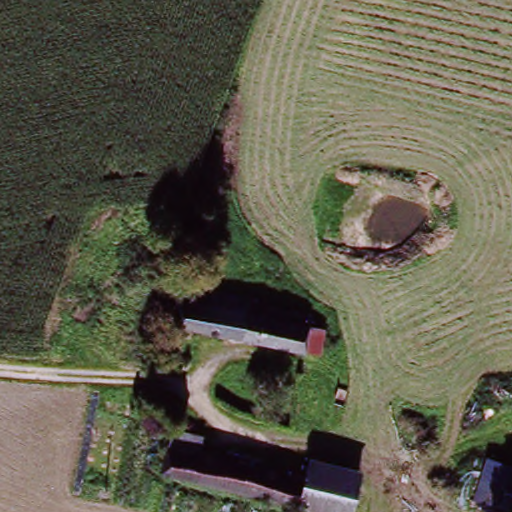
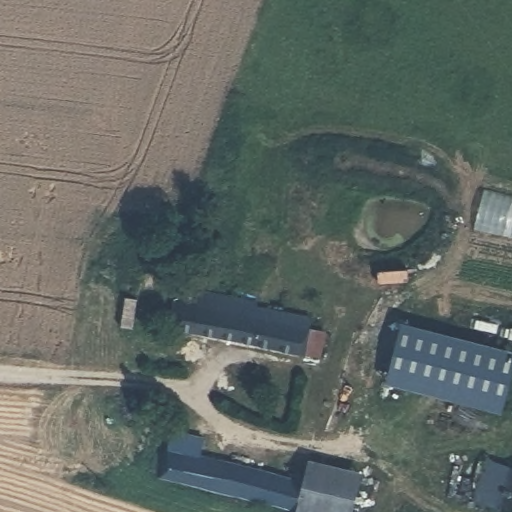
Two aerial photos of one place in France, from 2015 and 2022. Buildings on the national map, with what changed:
new [(477,227),(482,195),(512,201),(512,236),(477,227)]
unchanged [(170,325),(173,300),(181,301),(185,288),(252,304),(250,315),(322,331),(318,358),(170,325)]
new [(385,381),(402,320),(512,349),(512,374),(502,411),(385,381)]
unchanged [(165,479),(175,432),(207,441),(203,457),(305,483),(300,511),(165,479)]
unchanged [(497,511),(477,505),(491,459),(512,465),(512,471),(497,511)]
unchanged [(310,464),(360,475),(352,512),(304,512),(300,511),(305,483),(310,464)]
unchanged [(500,512),(497,511),(512,471),(512,512),(500,512)]
unchanged [(304,512),(300,512),(300,511),(304,512)]

